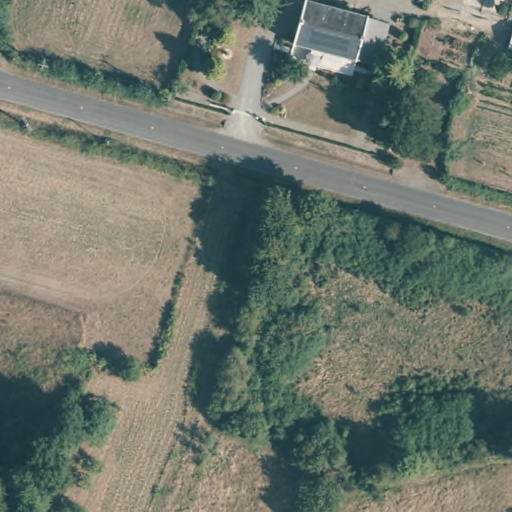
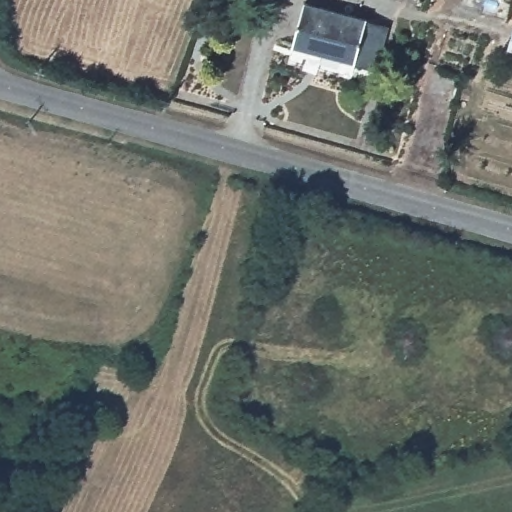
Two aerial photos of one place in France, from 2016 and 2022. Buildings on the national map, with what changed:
unchanged [(375,73),(354,67),(290,49),(302,6),(366,25),(387,30),(375,73)]
unchanged [(512,24),(512,50),(506,49),(510,24),(512,24)]

